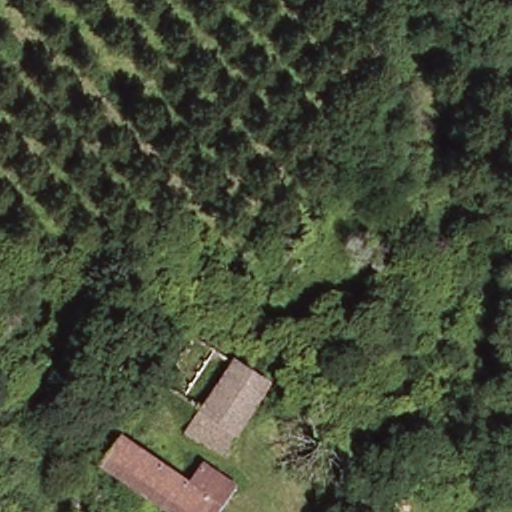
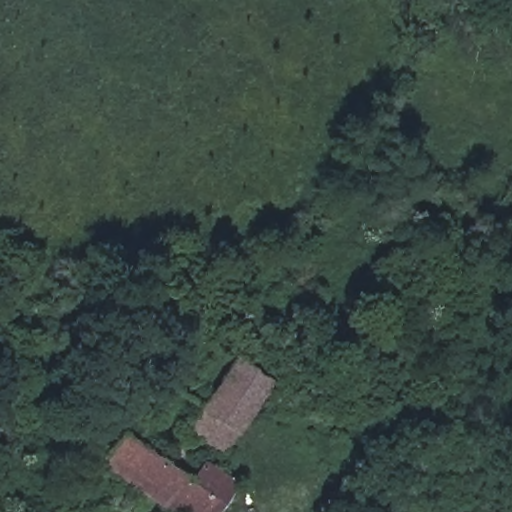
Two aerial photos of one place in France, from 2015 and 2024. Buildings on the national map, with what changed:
unchanged [(203,414),(193,408),(230,357),(270,378),(239,432),(220,455),(182,432),(203,414)]
unchanged [(194,485),(200,476),(212,482),(217,474),(234,487),(219,512),(163,512),(136,493),(129,504),(116,496),(121,484),(104,471),(124,436),(194,485)]

